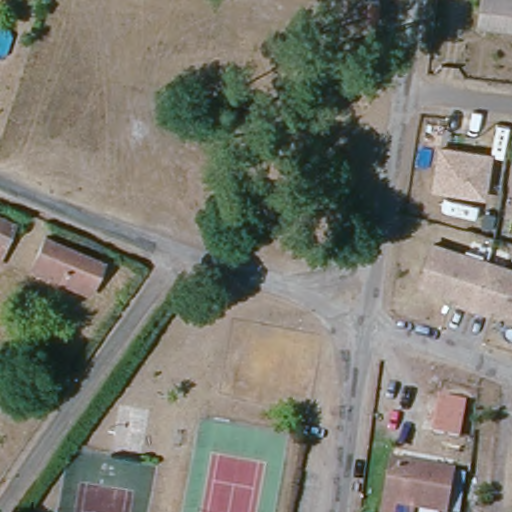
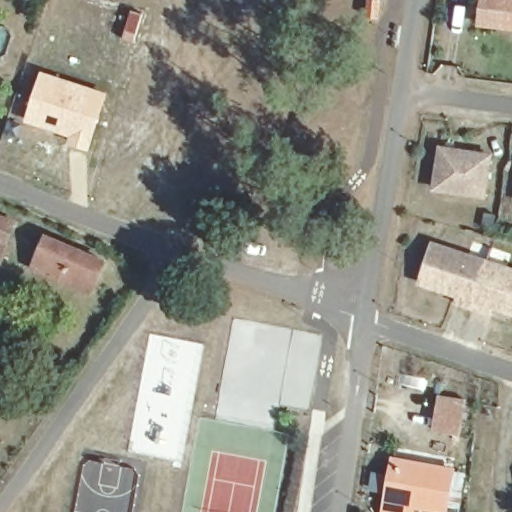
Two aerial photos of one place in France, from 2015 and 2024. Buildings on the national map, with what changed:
unchanged [(494,22),(480,20),(483,0),(498,0),(494,22)]
unchanged [(494,22),(498,0),(512,0),(512,24),(494,22)]
demolished [(372,55),(373,44),(386,45),(384,58),(372,55)]
new [(39,69),(107,91),(89,151),(64,143),(66,137),(21,120),(39,69)]
unchanged [(483,198),(433,190),(439,149),(489,157),(483,198)]
unchanged [(0,218),(18,225),(1,265),(0,265),(0,218)]
unchanged [(28,266),(42,233),(101,259),(89,291),(28,266)]
unchanged [(492,303),(489,310),(458,300),(460,293),(421,280),(434,242),(512,267),(512,310),(492,303)]
unchanged [(438,434),(442,399),(467,402),(462,436),(438,434)]
unchanged [(407,503),(406,512),(376,512),(379,496),(386,456),(393,457),(447,466),(439,508),(407,503)]
unchanged [(440,512),(440,510),(454,511),(453,512),(440,512)]

